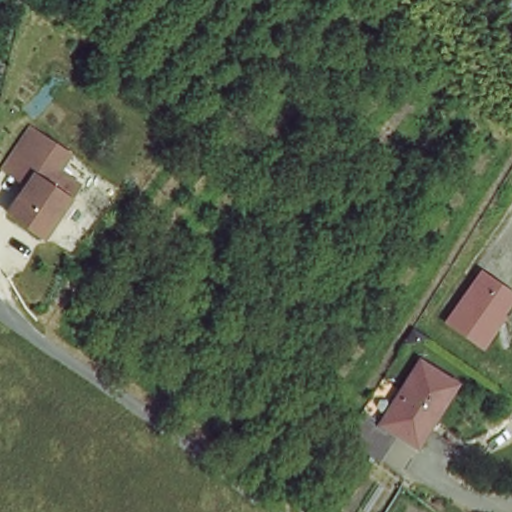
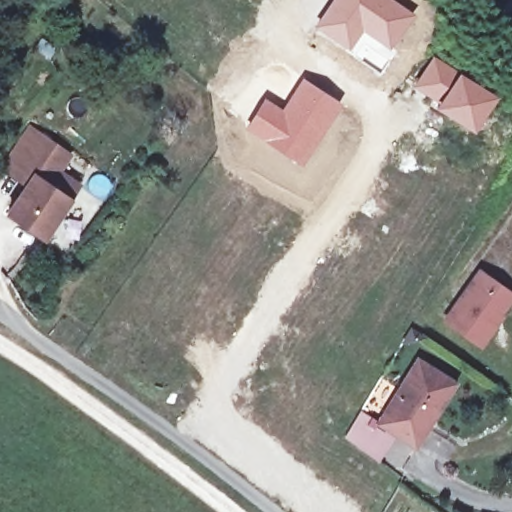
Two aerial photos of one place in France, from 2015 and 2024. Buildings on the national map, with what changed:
new [(329,0),(396,0),(411,11),(386,47),(361,29),(345,49),(312,25),(329,0)]
new [(431,52),(456,68),(435,102),(411,86),(431,52)]
new [(435,102),(456,68),(495,92),(468,130),(432,105),(435,102)]
new [(264,97),(281,107),(302,76),(341,102),(300,166),(245,129),(264,97)]
unchanged [(72,151),(60,167),(75,179),(64,196),(41,234),(0,210),(0,208),(17,181),(0,170),(0,168),(29,122),(72,151)]
unchanged [(476,270),(506,293),(483,322),(487,327),(473,343),(439,316),(476,270)]
unchanged [(452,377),(411,444),(391,431),(375,455),(342,436),(359,403),(374,411),(412,352),(452,377)]

